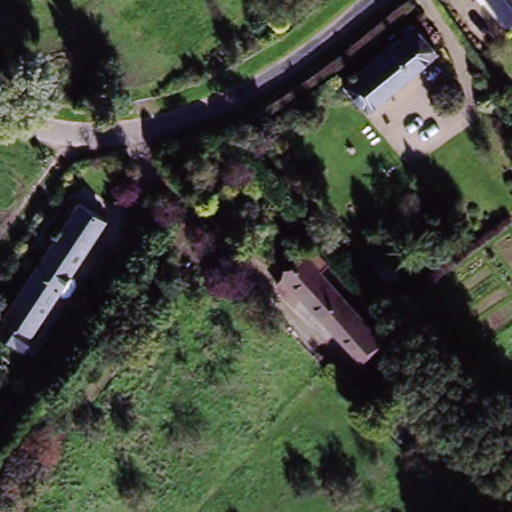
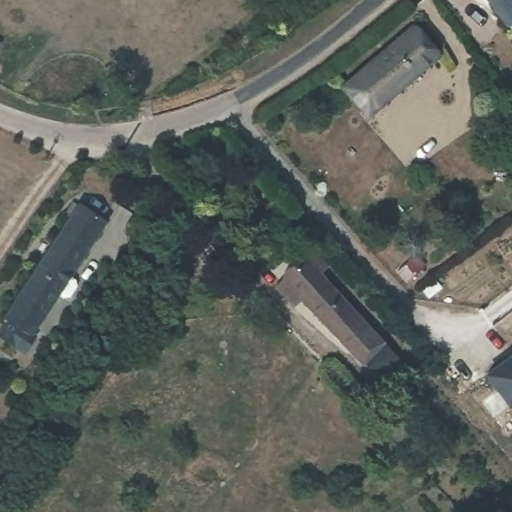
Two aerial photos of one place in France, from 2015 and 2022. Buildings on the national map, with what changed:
unchanged [(512,20),(503,27),(484,0),(512,0),(512,20)]
unchanged [(409,26),(433,55),(367,114),(342,86),(409,26)]
unchanged [(10,54),(0,74),(0,48),(10,54)]
unchanged [(78,288),(71,297),(65,298),(57,294),(31,332),(3,314),(81,200),(109,219),(71,274),(80,280),(78,288)]
unchanged [(367,385),(353,369),(273,280),(306,250),(321,266),(312,274),(377,348),(392,364),(367,385)]
new [(512,405),(491,379),(512,362),(512,405)]

